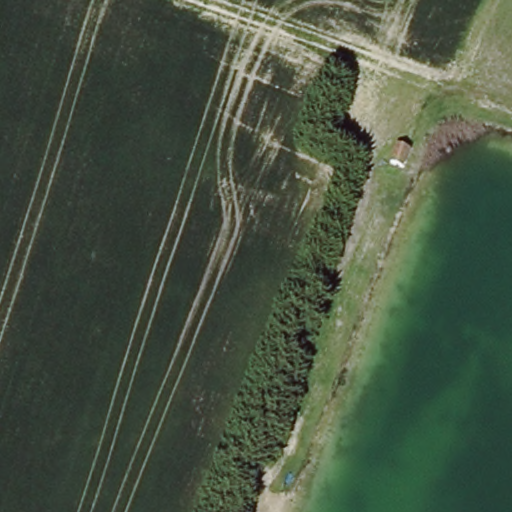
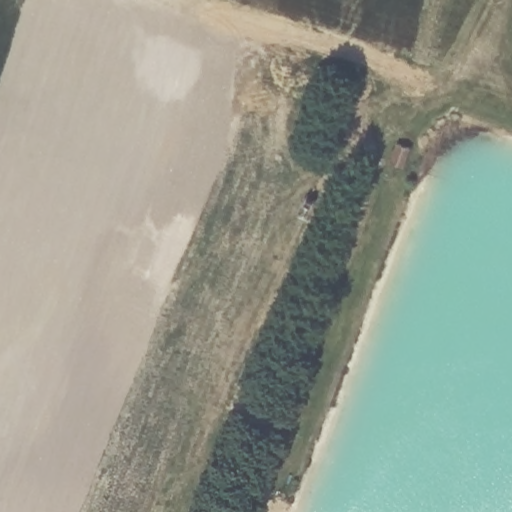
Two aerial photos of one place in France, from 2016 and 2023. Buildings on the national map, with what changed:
unchanged [(398,144),(408,147),(402,165),(392,161),(398,144)]

